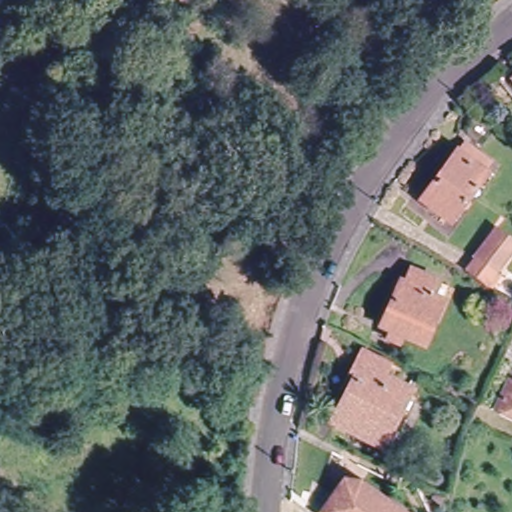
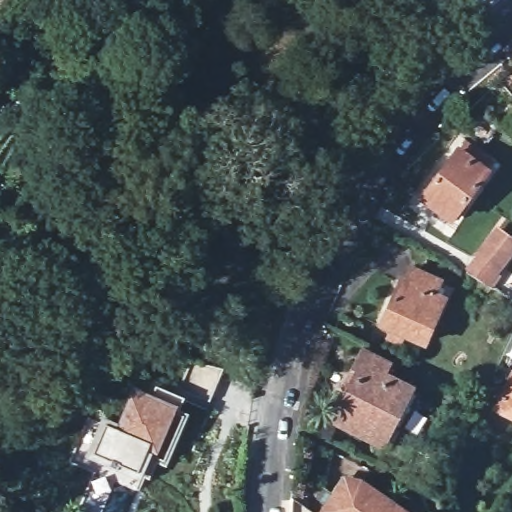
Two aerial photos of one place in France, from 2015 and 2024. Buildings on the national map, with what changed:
unchanged [(507,79),(512,75),(512,85),(507,79)]
unchanged [(453,156),(456,159),(463,150),(484,168),(479,177),(481,179),(448,223),(419,201),(453,156)]
unchanged [(461,272),(493,228),(512,242),(512,251),(491,289),(461,272)]
unchanged [(381,341),(386,330),(375,324),(393,282),(399,285),(406,269),(433,283),(444,289),(438,303),(417,344),(398,335),(392,346),(381,341)]
unchanged [(385,441),(376,435),(329,412),(343,382),(339,380),(343,370),(350,356),(402,383),(412,388),(385,441)]
unchanged [(493,413),(512,375),(512,421),(493,413)]
new [(115,429),(134,387),(177,405),(155,457),(147,453),(138,474),(90,456),(105,425),(115,429)]
unchanged [(342,473),(356,474),(405,512),(328,512),(320,506),(342,473)]

